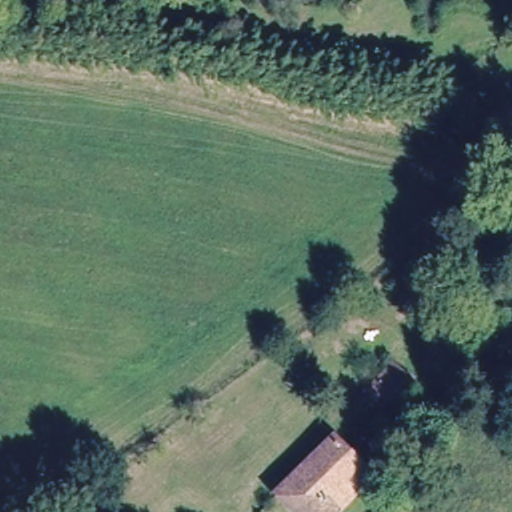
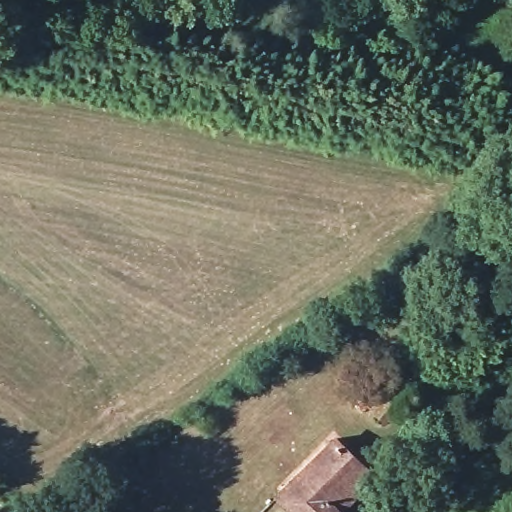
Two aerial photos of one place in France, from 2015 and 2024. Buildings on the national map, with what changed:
unchanged [(387,416),(368,394),(399,363),(420,383),(387,416)]
unchanged [(333,440),(371,477),(336,512),(297,512),(278,492),(333,440)]

